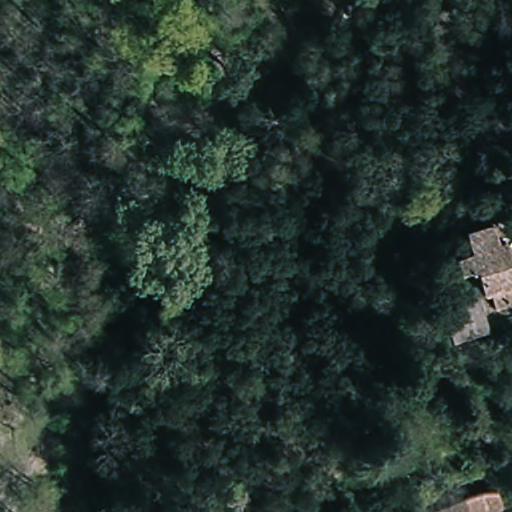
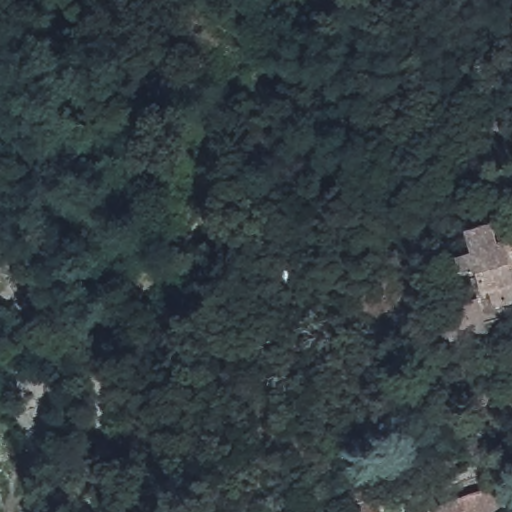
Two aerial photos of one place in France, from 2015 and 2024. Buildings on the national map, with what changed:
unchanged [(512,267),(512,286),(485,297),(479,282),(469,286),(460,264),(450,268),(444,253),(489,235),(506,269),(512,267)]
unchanged [(484,321),(456,335),(445,310),(473,297),(484,321)]
unchanged [(492,490),(494,508),(491,512),(426,512),(476,491),(492,490)]

